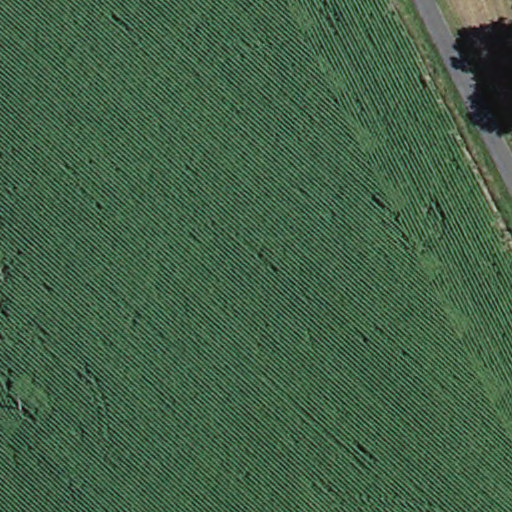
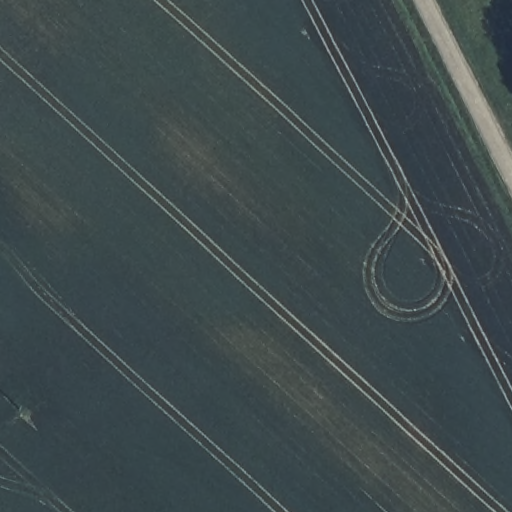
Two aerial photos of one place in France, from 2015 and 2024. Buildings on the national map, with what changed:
[]

